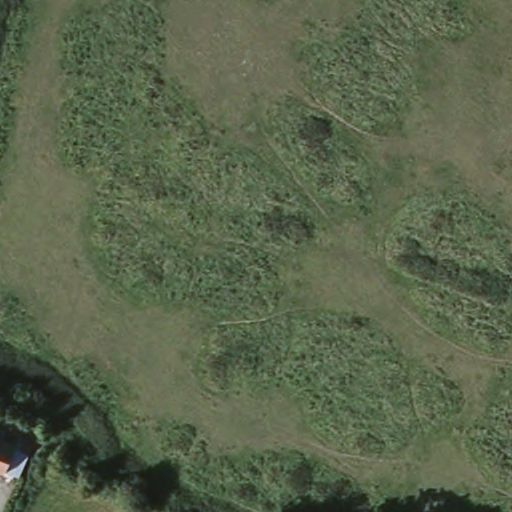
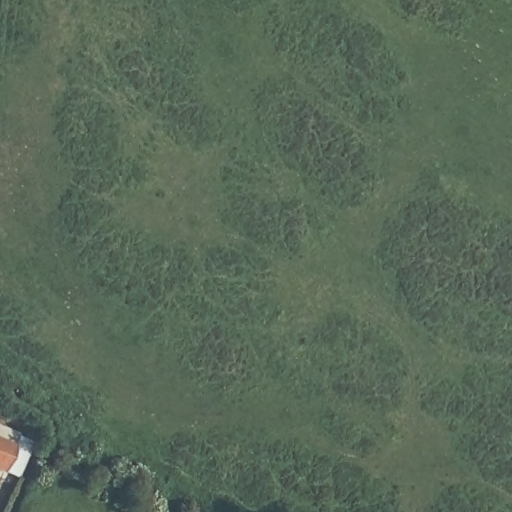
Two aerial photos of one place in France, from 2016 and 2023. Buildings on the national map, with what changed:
unchanged [(13,444),(1,472),(0,471),(0,439),(13,444)]

